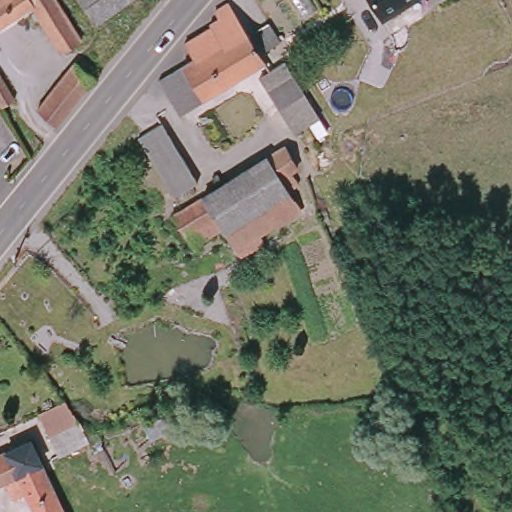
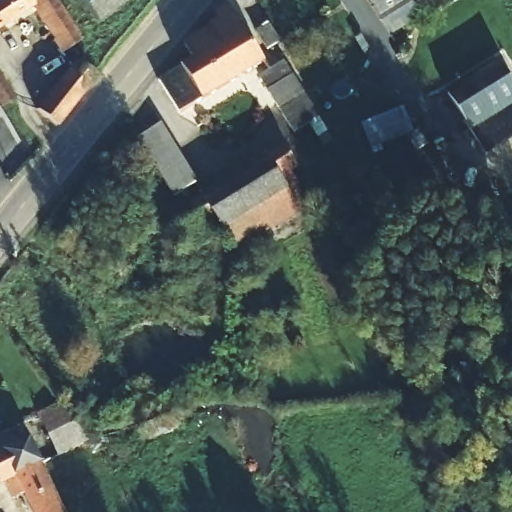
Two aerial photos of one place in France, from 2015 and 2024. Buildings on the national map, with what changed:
unchanged [(82,36),(83,39),(61,53),(30,7),(0,27),(0,0),(76,0),(95,29),(82,36)]
unchanged [(82,0),(126,0),(97,21),(82,0)]
unchanged [(374,0),(406,0),(383,14),(374,0)]
unchanged [(211,28),(210,25),(220,19),(215,13),(228,4),(264,62),(180,115),(159,82),(195,59),(185,44),(211,28)]
unchanged [(268,23),(280,41),(273,45),(267,49),(257,31),(268,23)]
unchanged [(77,63),(80,59),(87,64),(83,68),(92,75),(95,76),(87,86),(57,125),(36,109),(75,61),(77,63)]
unchanged [(283,62),(307,100),(311,106),(319,119),(311,124),(295,134),(259,77),(283,62)]
new [(512,81),(512,140),(486,156),(448,95),(500,62),(512,81)]
unchanged [(14,99),(0,107),(0,76),(14,99)]
new [(413,132),(382,144),(384,150),(372,155),(362,123),(403,108),(413,132)]
unchanged [(160,123),(197,181),(173,195),(137,137),(160,123)]
unchanged [(270,161),(288,150),(302,172),(283,183),(292,197),(228,237),(207,202),(270,161)]
unchanged [(303,214),(240,254),(228,237),(292,197),(303,214)]
unchanged [(205,203),(226,237),(200,253),(193,242),(191,243),(177,220),(205,203)]
unchanged [(30,439),(27,432),(52,419),(56,427),(77,417),(87,441),(62,453),(42,462),(65,512),(34,512),(25,491),(12,497),(3,480),(0,482),(0,453),(30,439)]

